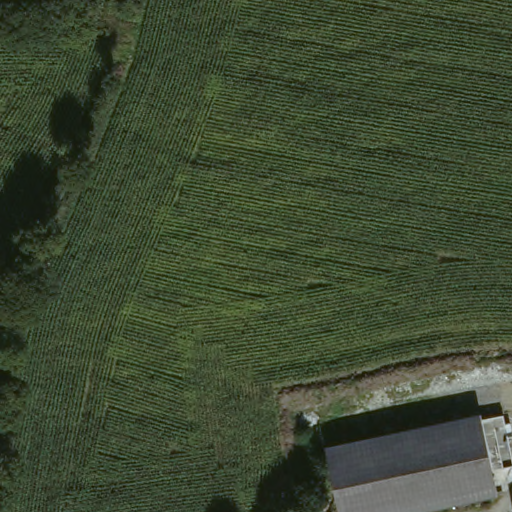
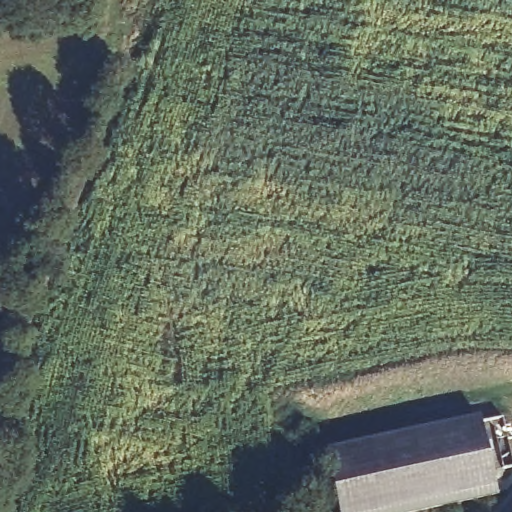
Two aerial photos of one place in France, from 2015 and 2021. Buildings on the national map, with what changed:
unchanged [(484,425),(493,499),(408,512),(338,512),(328,443),(484,425)]

